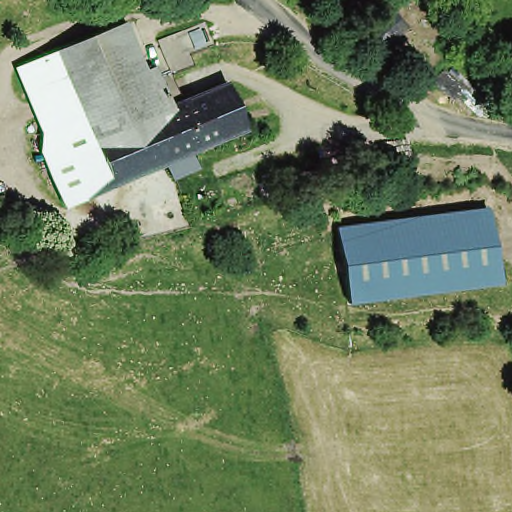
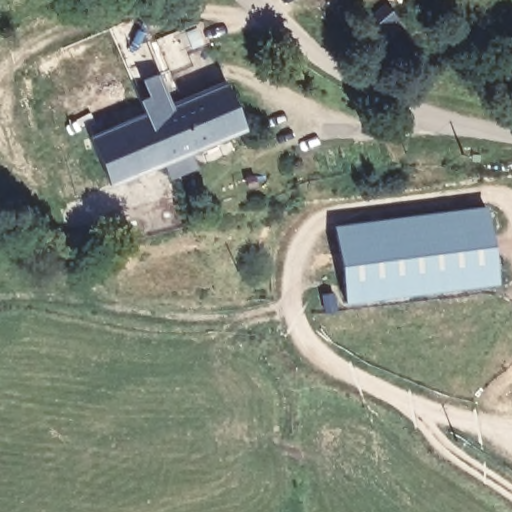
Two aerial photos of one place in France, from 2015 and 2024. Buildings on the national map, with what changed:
unchanged [(394,18),(370,38),(360,27),(384,7),(394,18)]
demolished [(67,208),(42,146),(44,134),(17,71),(112,33),(142,102),(85,125),(112,189),(67,208)]
unchanged [(180,171),(177,162),(112,189),(85,125),(142,102),(132,81),(156,71),(165,93),(172,109),(228,85),(247,132),(194,155),(197,164),(180,171)]
unchanged [(486,208),(496,283),(345,303),(335,228),(486,208)]

